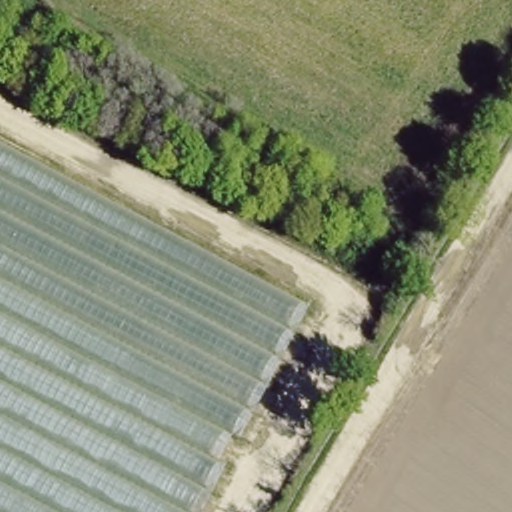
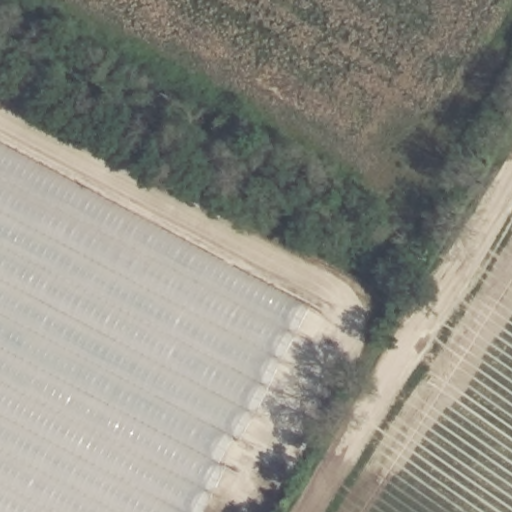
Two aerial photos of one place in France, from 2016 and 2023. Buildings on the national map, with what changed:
unchanged [(310,302),(199,512),(0,512),(0,139),(310,302)]

